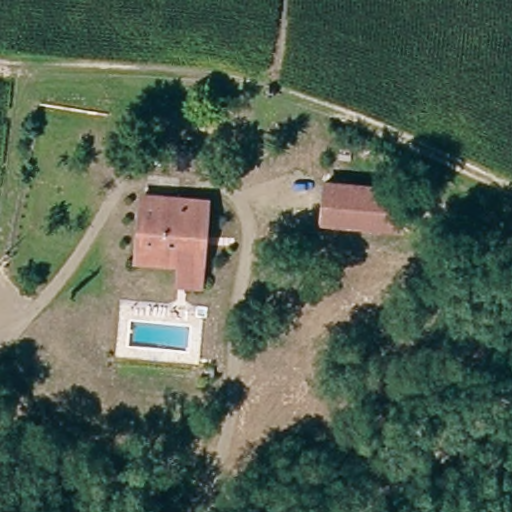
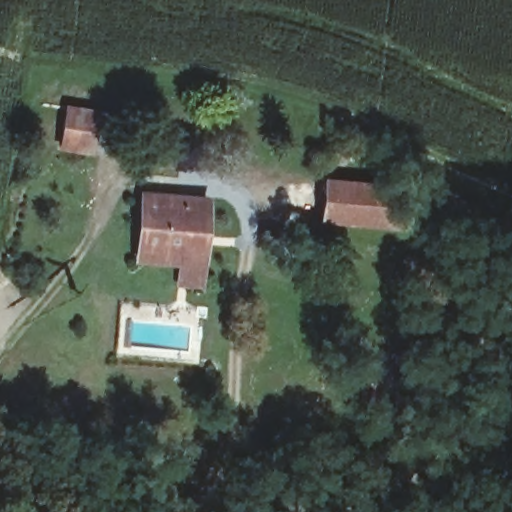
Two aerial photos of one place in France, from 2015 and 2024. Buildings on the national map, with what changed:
new [(58,151),(64,105),(99,110),(92,155),(58,151)]
unchanged [(318,219),(324,179),(403,190),(400,229),(318,219)]
unchanged [(176,267),(135,263),(140,193),(201,198),(196,269),(194,291),(175,289),(176,267)]

